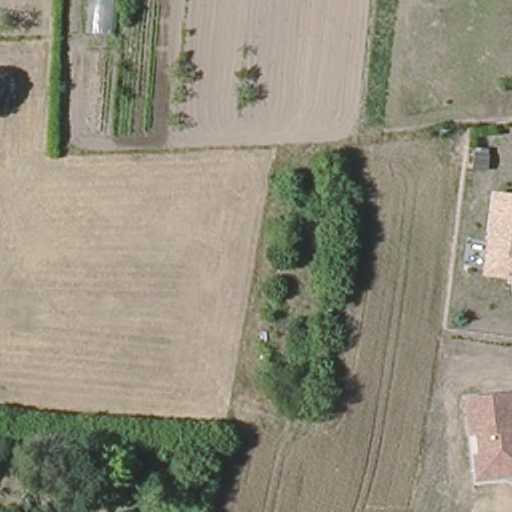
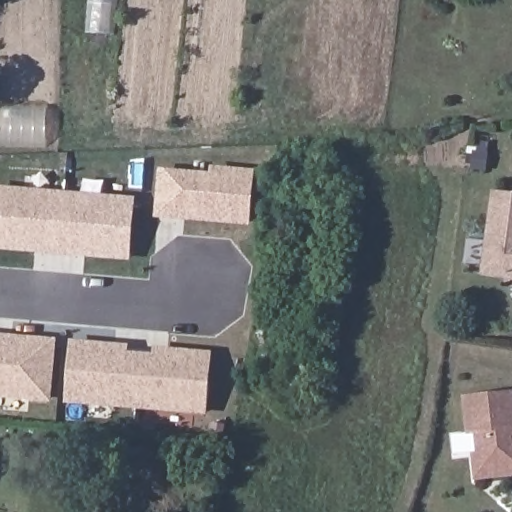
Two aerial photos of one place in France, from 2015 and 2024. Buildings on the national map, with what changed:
new [(250,226),(154,218),(158,169),(209,172),(210,166),(255,170),(250,226)]
new [(130,261),(0,250),(0,187),(135,198),(130,261)]
unchanged [(492,194),(512,196),(512,281),(482,277),(492,194)]
new [(51,402),(0,398),(0,334),(56,338),(51,402)]
new [(206,416),(64,403),(70,340),(129,345),(128,350),(153,353),(154,347),(212,352),(206,416)]
unchanged [(461,397),(512,392),(512,478),(473,482),(461,397)]

